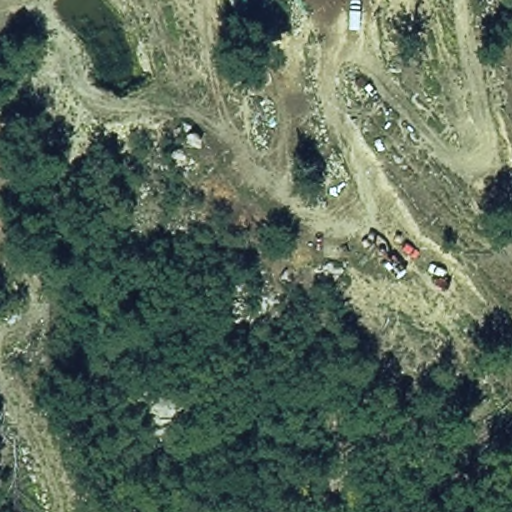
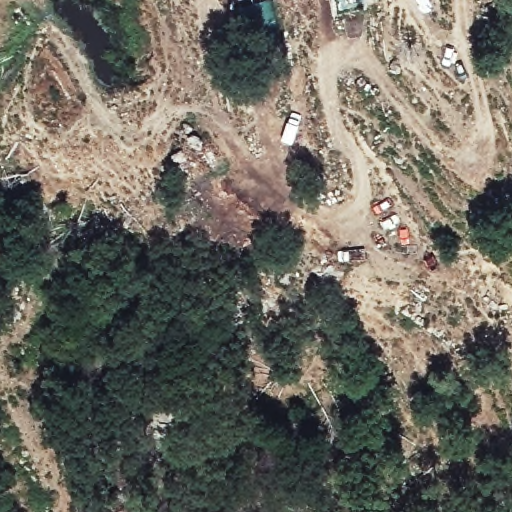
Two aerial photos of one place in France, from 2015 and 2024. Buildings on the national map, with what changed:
unchanged [(272,40),(243,47),(231,0),(263,0),(272,40)]

